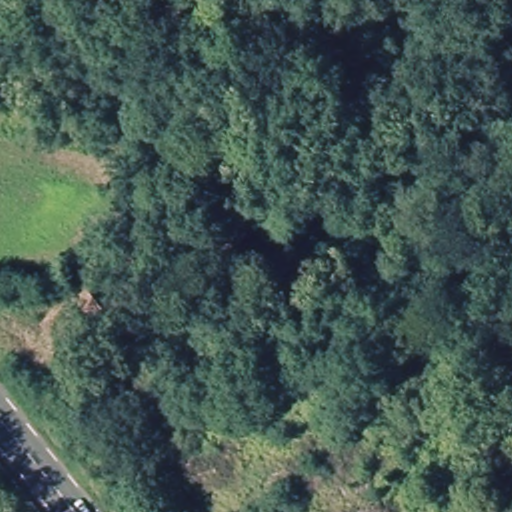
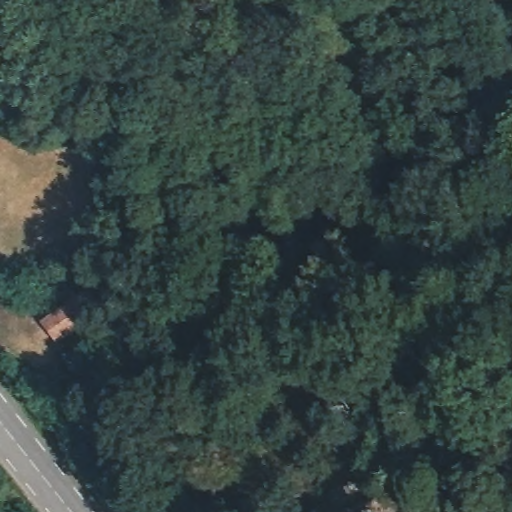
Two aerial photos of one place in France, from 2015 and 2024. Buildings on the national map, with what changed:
unchanged [(85,336),(39,364),(25,343),(72,315),(85,336)]

